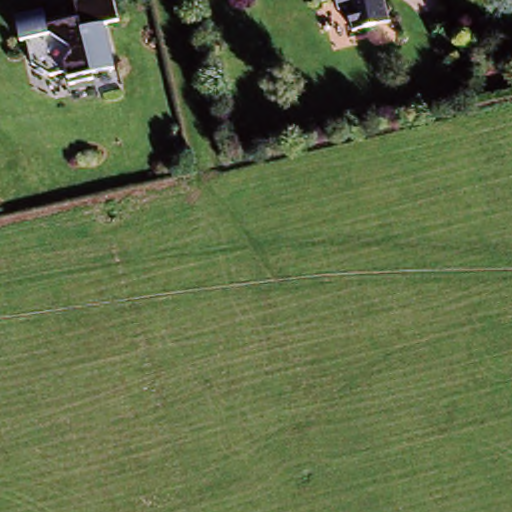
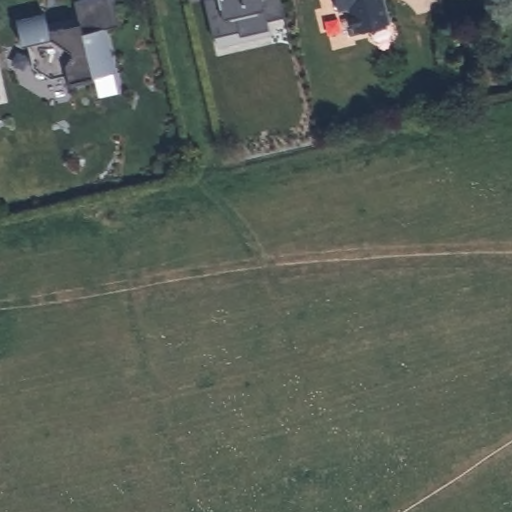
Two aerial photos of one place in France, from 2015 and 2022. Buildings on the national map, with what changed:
unchanged [(87,25),(82,4),(96,0),(121,0),(127,26),(112,29),(123,73),(102,78),(103,84),(78,89),(75,77),(60,80),(42,69),(35,45),(30,47),(24,23),(52,15),(57,33),(87,25)]
new [(268,19),(270,29),(240,37),(238,30),(214,36),(204,0),(281,0),(285,16),(268,19)]
unchanged [(332,11),(329,0),(384,0),(389,19),(348,31),(342,9),(332,11)]

